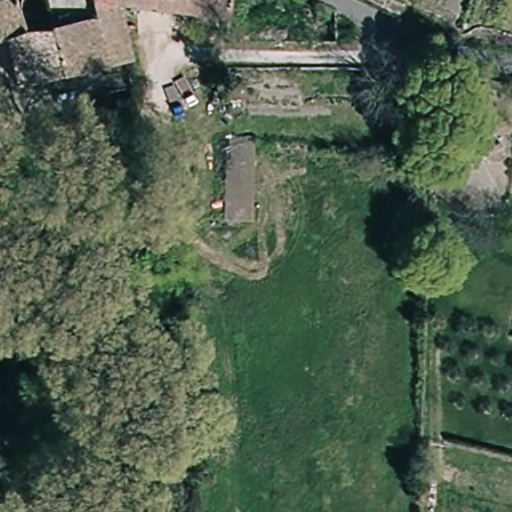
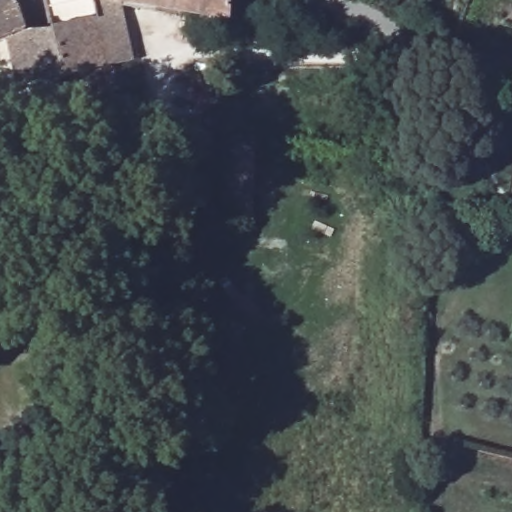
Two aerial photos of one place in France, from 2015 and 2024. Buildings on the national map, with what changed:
unchanged [(0,0),(16,0),(25,27),(7,34),(0,35),(0,0)]
unchanged [(18,82),(7,34),(25,27),(51,26),(45,0),(114,0),(125,50),(126,57),(106,62),(18,82)]
unchanged [(142,0),(230,0),(229,15),(142,0)]
unchanged [(78,156),(53,162),(48,137),(73,132),(73,137),(78,156)]

